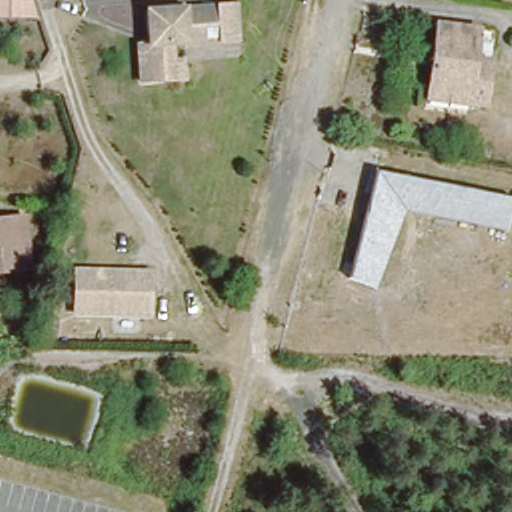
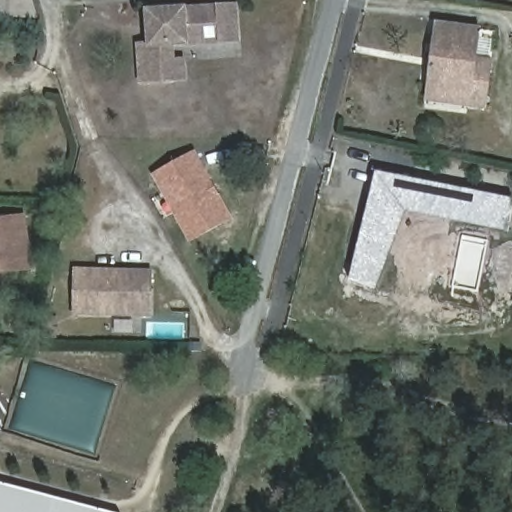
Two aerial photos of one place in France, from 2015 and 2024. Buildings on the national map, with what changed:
unchanged [(185,79),(175,79),(142,81),(141,45),(150,45),(149,11),(237,6),(238,39),(218,40),(204,41),(172,43),(174,61),(184,61),(185,79)]
unchanged [(427,87),(436,24),(478,30),(474,59),(491,61),(485,105),(469,103),(426,97),(427,87)]
new [(151,174),(194,150),(233,220),(189,244),(151,174)]
unchanged [(404,210),(374,288),(349,280),(375,169),(512,199),(512,215),(508,231),(404,210)]
unchanged [(21,216),(29,266),(4,269),(0,270),(0,219),(21,216)]
unchanged [(145,317),(71,316),(72,274),(108,275),(110,280),(116,280),(120,275),(146,275),(145,317)]
new [(104,512),(0,512),(0,485),(104,512)]

